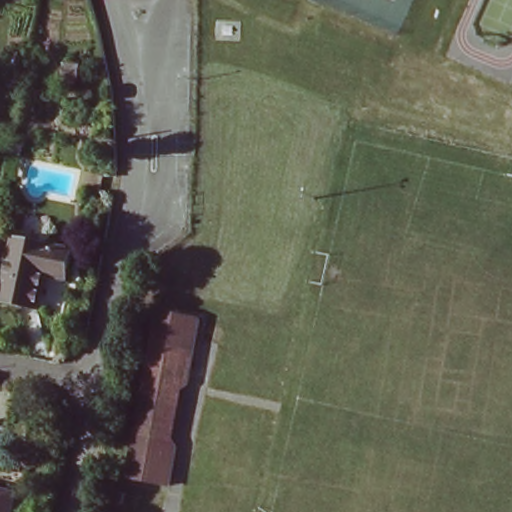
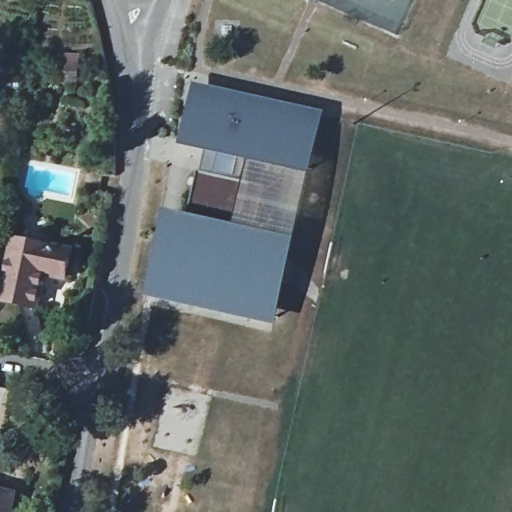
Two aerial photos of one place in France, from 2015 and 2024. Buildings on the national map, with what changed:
unchanged [(237,19),(236,37),(211,37),(213,17),(237,19)]
new [(186,212),(197,164),(203,139),(191,136),(203,82),(301,104),(288,159),(246,149),(240,174),(265,180),(253,227),(271,232),(253,306),(157,284),(174,210),(186,212)]
new [(246,149),(288,159),(301,104),(321,109),(276,311),(253,306),(271,232),(253,227),(265,180),(240,174),(246,149)]
unchanged [(70,249),(63,278),(46,274),(38,306),(5,297),(19,237),(70,249)]
demolished [(201,319),(188,384),(158,385),(150,433),(172,438),(178,446),(170,485),(125,476),(156,311),(201,319)]
unchanged [(0,484),(12,487),(6,512),(0,512),(0,484)]

